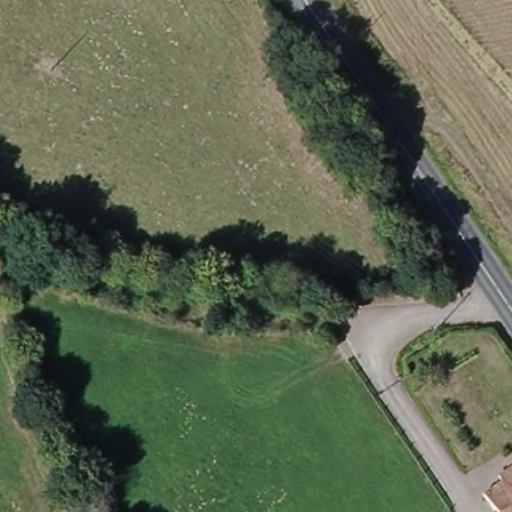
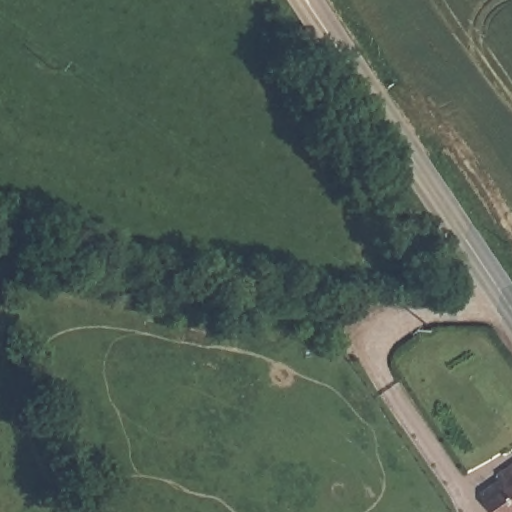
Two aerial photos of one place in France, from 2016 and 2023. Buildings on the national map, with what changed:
unchanged [(510,488),(504,481),(512,475),(512,512),(494,512),(488,504),(510,488)]

